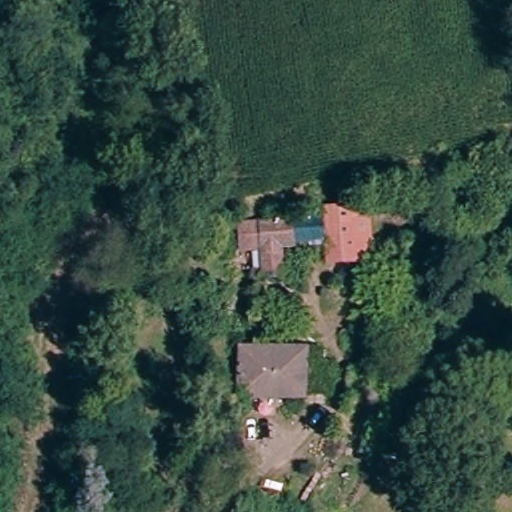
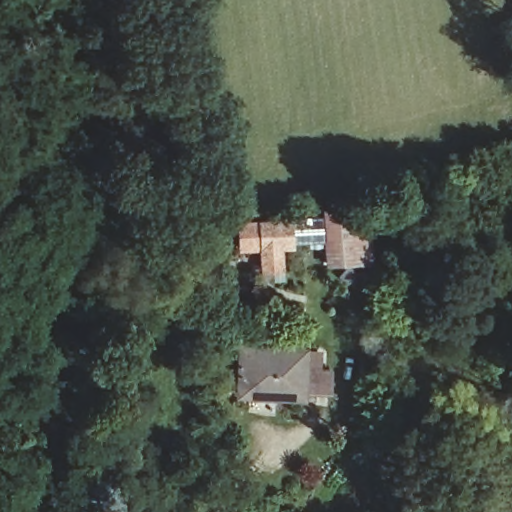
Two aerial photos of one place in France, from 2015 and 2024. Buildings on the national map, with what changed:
unchanged [(356,256),(331,259),(327,236),(293,240),(293,242),(280,244),(282,267),(266,269),(263,246),(244,248),(241,225),(288,219),(287,216),(323,211),(322,204),(363,199),(367,234),(370,255),(356,256)]
unchanged [(327,397),(300,397),(300,399),(240,400),(240,354),(302,353),(317,353),(317,374),(327,374),(327,397)]
unchanged [(363,399),(347,397),(350,375),(366,377),(363,399)]

